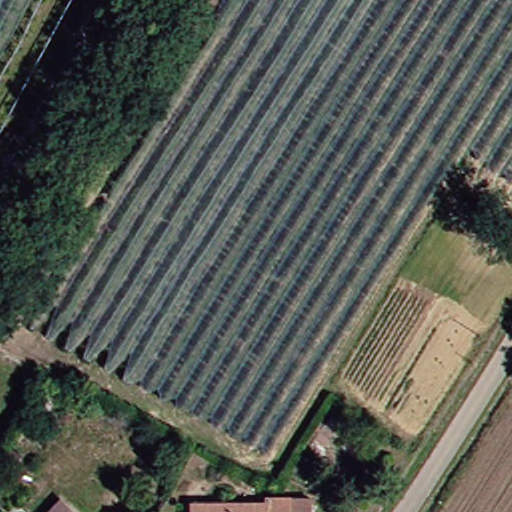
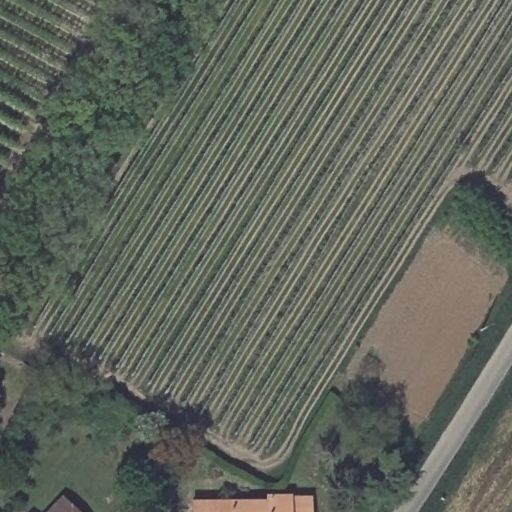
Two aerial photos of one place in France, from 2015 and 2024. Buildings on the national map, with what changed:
unchanged [(257,500),(257,490),(306,491),(307,512),(180,512),(179,497),(257,500)]
unchanged [(69,512),(39,512),(53,496),(69,512)]

